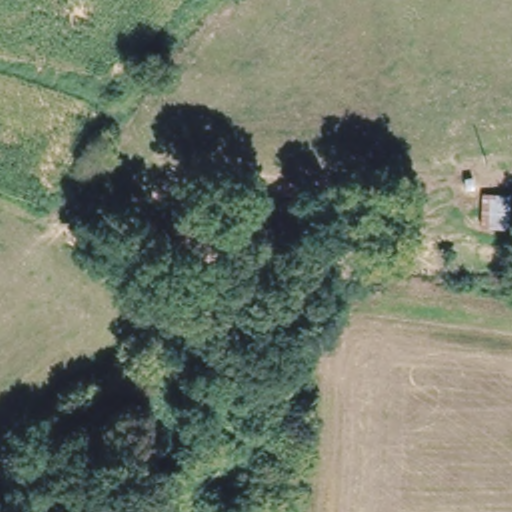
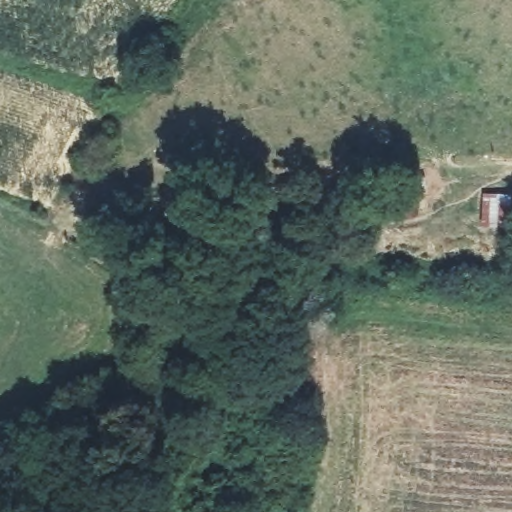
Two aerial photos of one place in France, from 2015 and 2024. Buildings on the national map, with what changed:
unchanged [(511,227),(482,225),(477,194),(493,186),(511,192),(511,227)]

